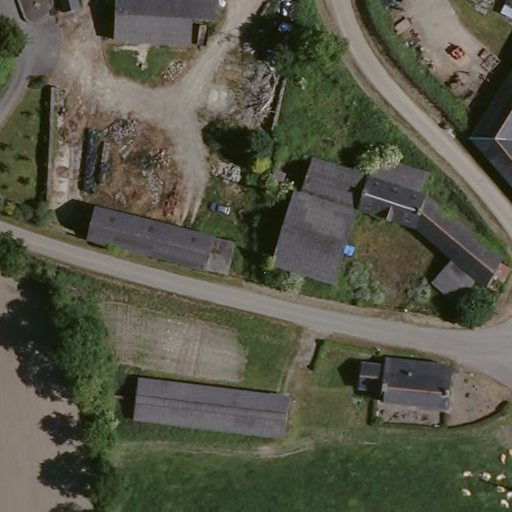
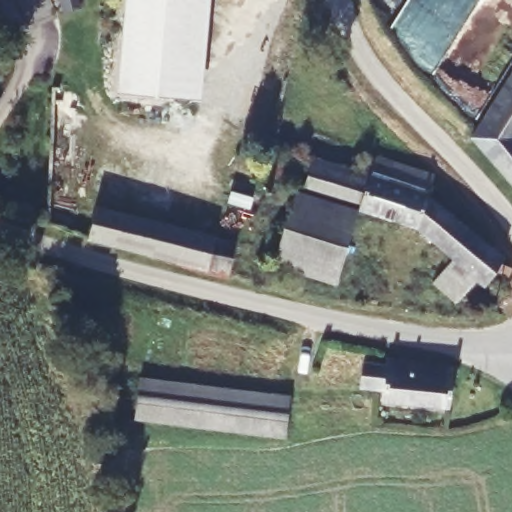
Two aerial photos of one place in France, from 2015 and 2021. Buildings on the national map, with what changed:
unchanged [(93,0),(94,7),(76,11),(73,0),(93,0)]
new [(210,0),(200,100),(117,92),(124,0),(210,0)]
unchanged [(512,0),(512,11),(500,4),(502,0),(512,0)]
demolished [(183,46),(107,40),(110,10),(185,17),(183,46)]
unchanged [(512,190),(467,140),(512,66),(512,190)]
demolished [(272,140),(202,124),(214,69),(285,86),(272,140)]
unchanged [(292,196),(272,191),(281,154),(354,175),(357,167),(372,170),(375,160),(435,176),(428,199),(504,263),(481,291),(471,283),(450,305),(427,285),(448,260),(415,231),(353,214),(292,196)]
unchanged [(330,288),(272,271),(292,196),(353,214),(330,288)]
unchanged [(226,280),(89,241),(90,205),(232,248),(227,277),(226,280)]
unchanged [(440,415),(377,401),(379,390),(356,385),(362,360),(385,365),(386,357),(391,358),(450,372),(447,383),(440,415)]
unchanged [(142,373),(285,410),(276,447),(132,412),(142,373)]

